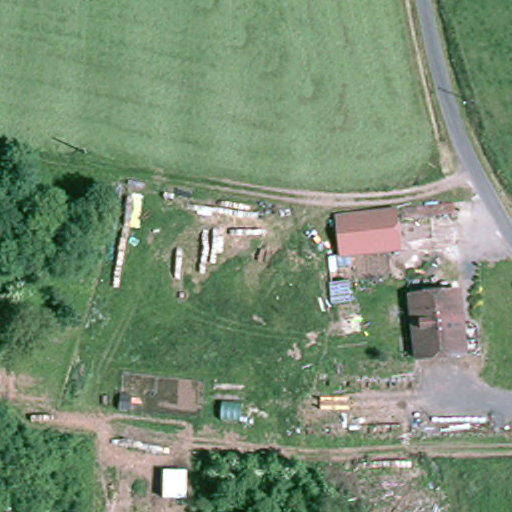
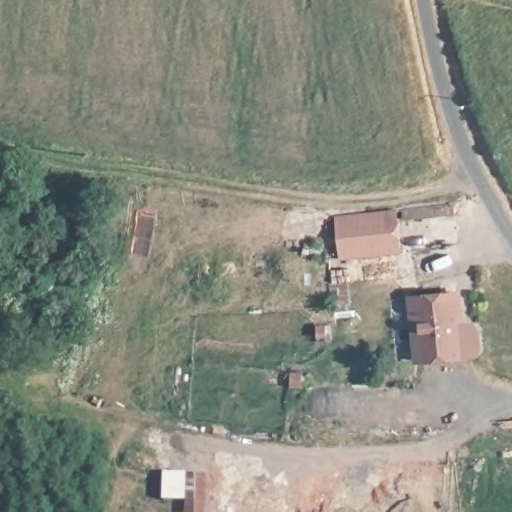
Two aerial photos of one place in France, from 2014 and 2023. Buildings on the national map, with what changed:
unchanged [(405,256),(345,264),(341,217),(404,210),(405,256)]
unchanged [(338,304),(336,282),(353,281),(355,302),(338,304)]
unchanged [(421,346),(417,304),(466,300),(469,334),(470,345),(471,365),(466,365),(422,369),(421,346)]

